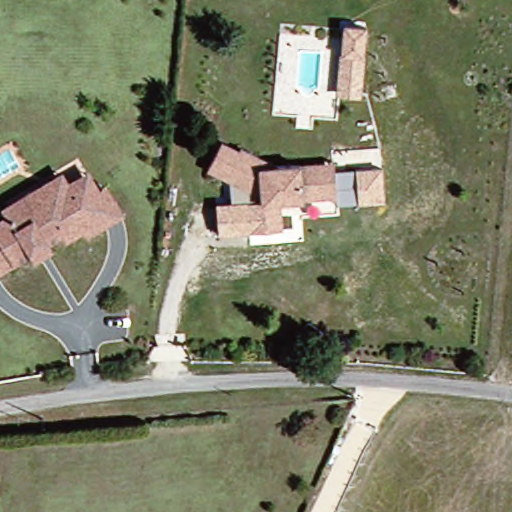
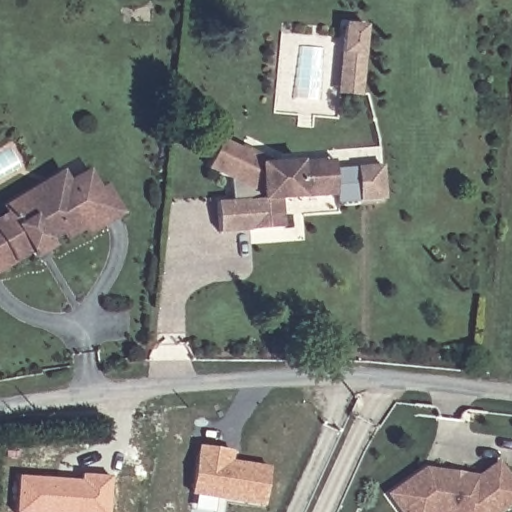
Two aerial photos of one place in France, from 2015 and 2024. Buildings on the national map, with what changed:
new [(367,22),(361,99),(338,97),(344,21),(367,22)]
unchanged [(280,166),(338,164),(338,199),(285,201),(285,232),(249,232),(249,204),(264,198),(210,165),(227,135),(280,166)]
new [(383,164),(384,197),(338,199),(338,168),(383,164)]
unchanged [(95,171),(103,188),(111,185),(126,216),(111,224),(94,234),(89,230),(73,237),(67,230),(52,238),(53,248),(39,258),(29,251),(0,265),(0,221),(11,215),(6,204),(42,185),(66,172),(72,181),(86,175),(95,171)]
unchanged [(264,198),(249,204),(249,232),(215,233),(215,202),(232,201),(230,178),(264,198)]
new [(192,496),(199,448),(232,453),(231,461),(268,467),(261,507),(192,496)]
new [(512,508),(506,512),(398,512),(386,495),(425,468),(476,476),(498,461),(512,481),(512,508)]
new [(81,482),(81,477),(110,479),(107,512),(17,512),(19,479),(81,482)]

